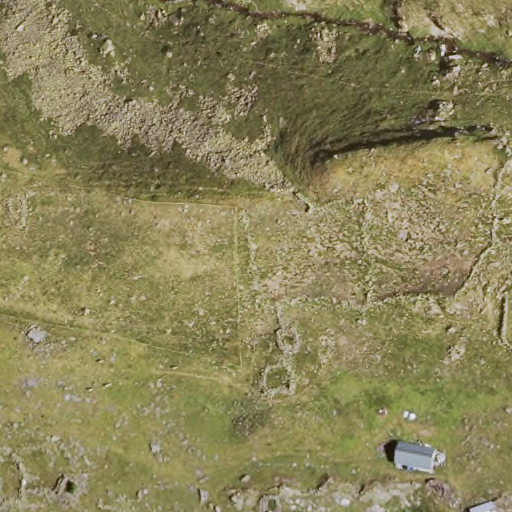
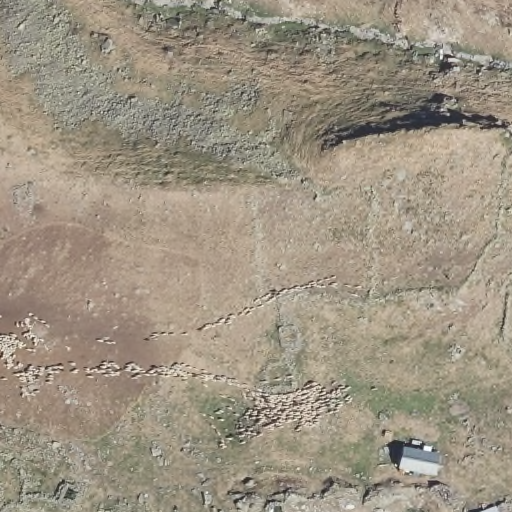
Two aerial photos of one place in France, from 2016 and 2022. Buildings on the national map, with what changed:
unchanged [(420,447),(443,451),(439,477),(401,471),(406,443),(420,447)]
unchanged [(499,503),(503,512),(479,512),(489,507),(499,503)]

